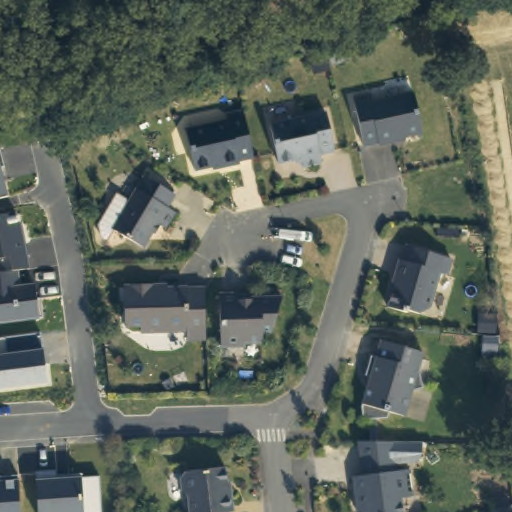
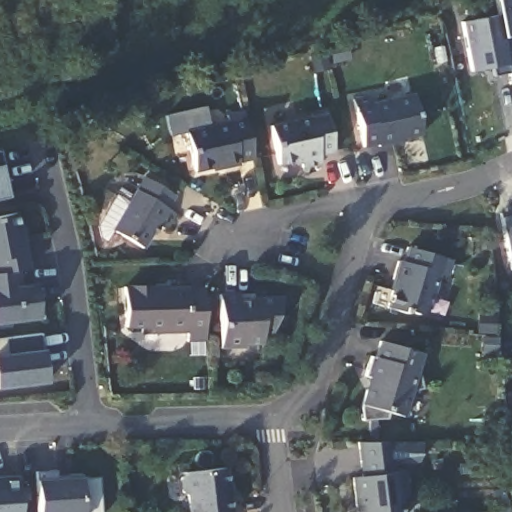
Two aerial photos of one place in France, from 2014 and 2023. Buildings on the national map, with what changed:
new [(508,74),(492,76),(491,69),(472,72),(462,23),(497,16),(495,0),(512,0),(512,79),(511,80),(508,74)]
unchanged [(426,136),(399,143),(399,145),(382,149),(382,146),(367,149),(357,101),(374,98),(376,106),(417,96),(426,136)]
unchanged [(249,139),(254,164),(240,166),(240,169),(223,173),(222,171),(196,177),(187,136),(229,127),(227,120),(244,116),(249,139)]
unchanged [(325,116),(332,154),(318,157),(320,166),(301,170),(300,161),(277,166),(269,128),(325,116)]
unchanged [(0,197),(0,173),(6,196),(0,197)]
unchanged [(144,175),(174,193),(166,206),(175,211),(165,228),(156,222),(142,246),(112,228),(144,175)]
unchanged [(0,322),(0,217),(17,214),(27,268),(9,272),(12,287),(35,286),(37,317),(0,322)]
new [(512,272),(508,259),(498,216),(512,214),(512,272)]
unchanged [(453,258),(449,274),(442,272),(431,307),(421,312),(410,309),(409,311),(390,305),(398,278),(396,277),(402,259),(406,260),(411,245),(453,258)]
unchanged [(205,334),(205,336),(187,337),(187,327),(141,327),(141,321),(125,322),(124,282),(160,281),(160,284),(204,283),(205,334)]
unchanged [(239,295),(239,302),(251,301),(251,299),(282,298),(271,333),(262,333),(262,344),(245,344),(245,347),(221,348),(220,295),(239,295)]
unchanged [(46,382),(0,386),(0,339),(40,335),(44,352),(46,382)]
unchanged [(427,358),(422,373),(427,393),(416,396),(408,421),(393,417),(392,423),(367,425),(366,412),(371,395),(377,388),(378,383),(370,381),(376,361),(380,362),(385,346),(427,358)]
unchanged [(360,442),(392,443),(396,475),(411,473),(413,499),(401,501),(402,512),(358,512),(354,480),(363,479),(360,442)]
unchanged [(231,496),(233,496),(235,512),(192,512),(191,499),(185,495),(183,481),(187,476),(227,471),(231,496)]
unchanged [(17,478),(20,512),(0,512),(0,479),(17,478)]
unchanged [(32,481),(80,478),(99,478),(101,512),(35,512),(32,481)]

